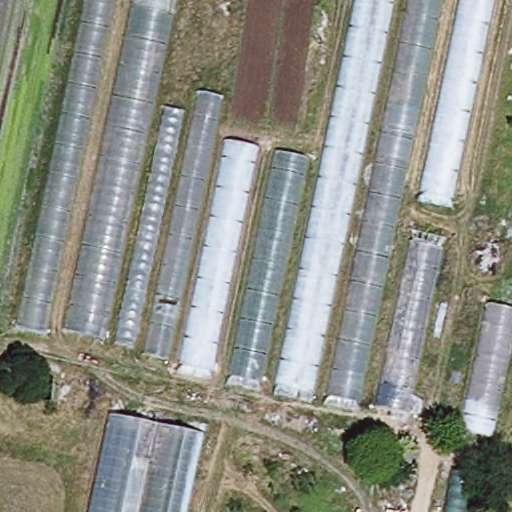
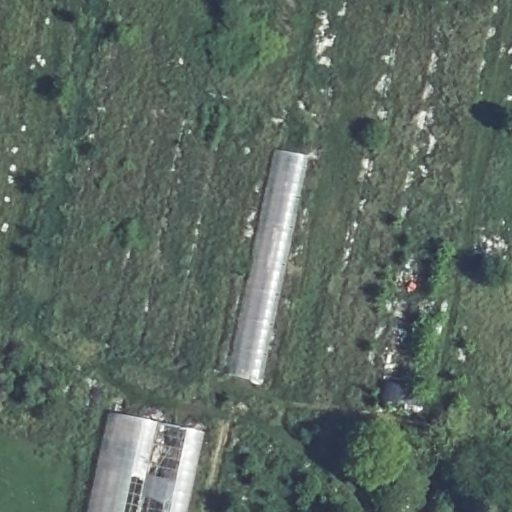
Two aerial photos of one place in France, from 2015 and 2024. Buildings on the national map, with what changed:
demolished [(184,0),(179,20),(204,26),(195,86),(228,93),(221,132),(327,156),(361,0),(500,0),(462,196),(411,187),(401,234),(450,244),(411,423),(180,373),(182,360),(22,329),(90,0),(184,0)]
demolished [(510,235),(512,225),(512,235),(510,235)]
unchanged [(115,412),(209,432),(192,512),(93,512),(115,412)]
unchanged [(419,452),(417,464),(405,461),(408,450),(419,452)]

